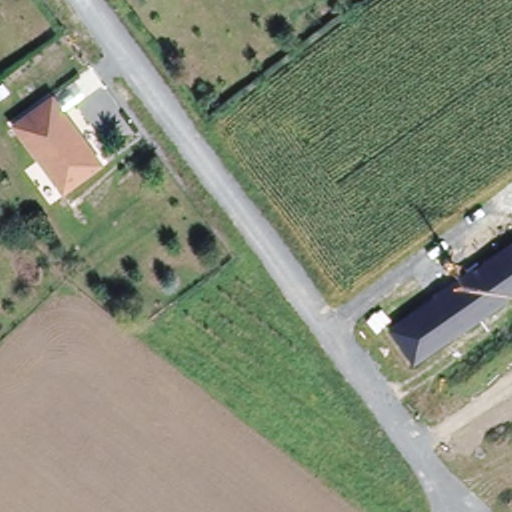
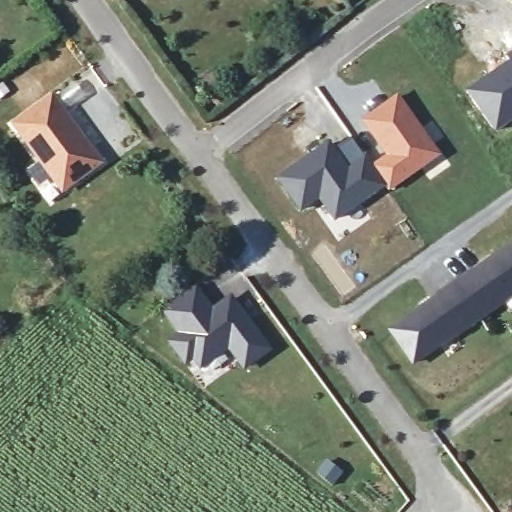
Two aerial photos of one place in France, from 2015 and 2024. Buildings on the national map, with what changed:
new [(508,60),(506,56),(512,52),(512,122),(495,133),(465,90),(508,60)]
new [(397,93),(442,155),(389,192),(386,187),(371,164),(383,155),(360,119),(397,93)]
unchanged [(13,124),(46,101),(51,97),(63,114),(100,164),(62,192),(52,178),(40,187),(28,171),(40,162),(13,124)]
new [(328,136),(335,145),(350,135),(371,164),(386,187),(334,222),(318,201),(299,213),(274,177),(328,136)]
unchanged [(414,366),(386,325),(512,235),(512,295),(414,366)]
new [(206,301),(213,312),(231,298),(269,349),(246,366),(228,343),(200,364),(193,354),(184,361),(171,344),(182,335),(163,311),(195,287),(206,301)]

